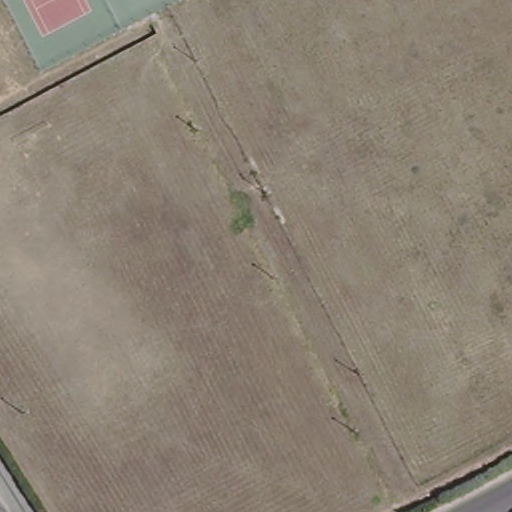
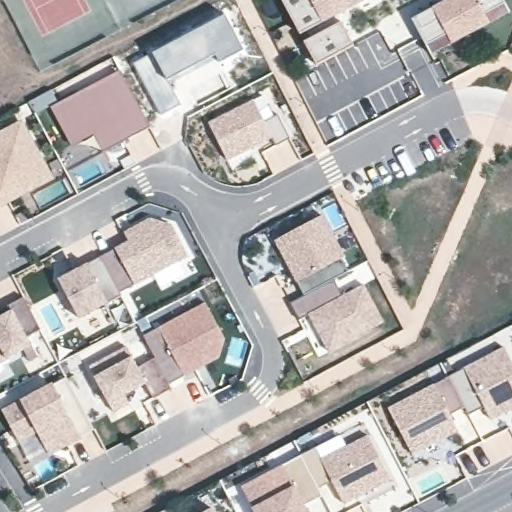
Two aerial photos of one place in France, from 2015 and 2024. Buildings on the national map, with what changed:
new [(282,0),(366,0),(299,35),(282,0)]
new [(369,1),(368,0),(372,0),(369,1)]
new [(419,17),(452,0),(511,0),(512,2),(512,14),(495,23),(457,42),(436,52),(432,44),(419,17)]
new [(434,1),(436,0),(452,0),(437,7),(434,1)]
new [(303,41),(340,22),(352,46),(315,65),(303,41)]
new [(102,152),(93,134),(85,138),(75,118),(60,126),(49,106),(119,70),(150,127),(102,152)]
new [(276,145),(272,137),(228,161),(207,124),(254,100),(266,122),(278,116),(290,139),(276,145)]
new [(0,204),(0,133),(20,122),(46,170),(50,177),(27,190),(0,204)]
new [(295,281),(273,240),(320,215),(342,257),(340,258),(347,271),(308,292),(302,295),(295,281)]
new [(137,236),(132,227),(149,219),(171,225),(187,256),(119,292),(100,255),(137,236)]
new [(125,234),(134,230),(137,236),(128,241),(125,234)]
new [(77,317),(57,278),(100,255),(121,295),(77,317)]
new [(332,279),(341,295),(362,285),(382,321),(327,351),(307,315),(297,320),(289,302),(308,292),(332,279)]
new [(30,345),(0,361),(0,309),(7,305),(22,296),(40,329),(26,337),(30,345)]
new [(142,335),(204,302),(223,338),(217,357),(167,383),(142,335)]
new [(30,345),(37,357),(29,362),(22,350),(30,345)]
new [(152,397),(144,382),(123,394),(127,402),(112,411),(88,365),(125,345),(135,366),(154,357),(170,388),(152,397)]
new [(502,347),(512,365),(512,408),(489,420),(482,407),(467,415),(447,376),(502,347)]
new [(93,429),(55,448),(46,431),(38,435),(35,430),(17,440),(1,410),(65,376),(93,429)]
new [(447,415),(455,430),(410,453),(387,408),(447,377),(462,407),(447,415)]
new [(314,446),(320,459),(367,435),(390,478),(342,503),(330,481),(317,488),(299,455),(314,446)]
new [(306,512),(254,512),(240,485),(299,455),(321,495),(302,505),(306,512)]
new [(213,512),(201,512),(210,507),(213,512)]

